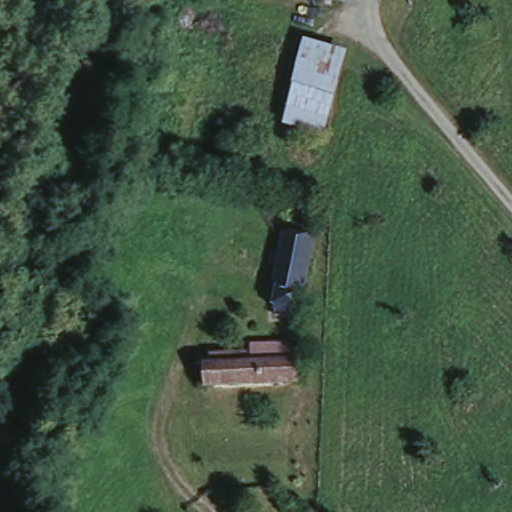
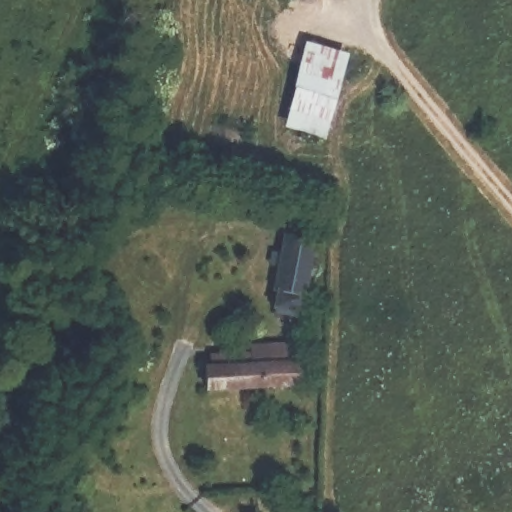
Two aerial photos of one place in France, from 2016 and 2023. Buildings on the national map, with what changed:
unchanged [(355,54),(326,138),(282,122),(308,36),(355,54)]
unchanged [(116,215),(112,229),(96,224),(100,210),(116,215)]
unchanged [(305,299),(276,295),(287,234),(314,239),(305,299)]
unchanged [(218,391),(219,370),(224,370),(225,356),(251,355),(251,347),(296,346),(295,388),(218,391)]

